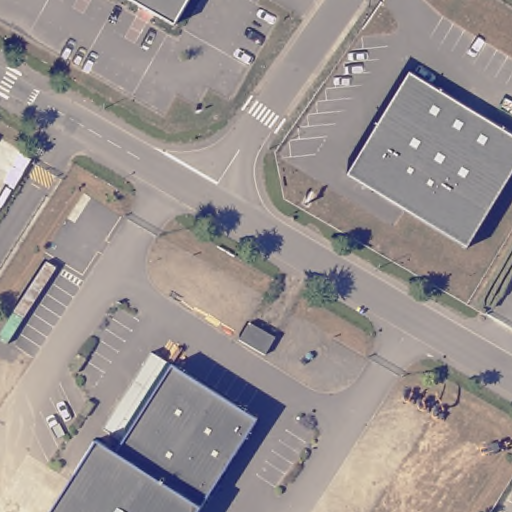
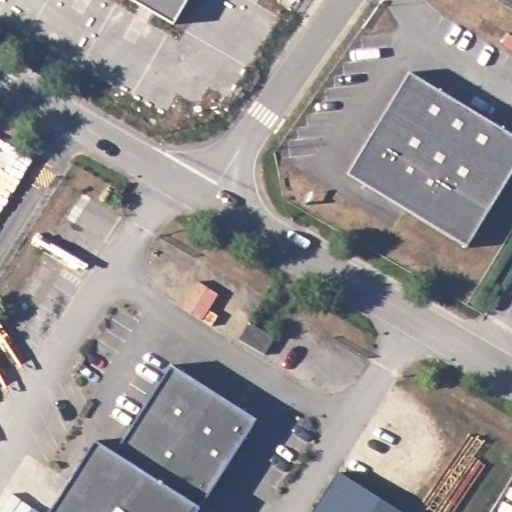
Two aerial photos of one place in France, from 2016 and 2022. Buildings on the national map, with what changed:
unchanged [(172,25),(129,0),(186,0),(172,25)]
unchanged [(343,175),(365,138),(403,71),(512,133),(512,163),(465,245),(402,208),(368,190),(347,177),(343,175)]
unchanged [(280,339),(270,356),(244,341),(254,324),(280,339)]
unchanged [(214,480),(217,483),(212,493),(207,490),(193,512),(45,512),(94,436),(113,449),(118,442),(98,429),(147,352),(252,419),(214,480)]
new [(400,512),(313,512),(334,479),(338,473),(400,512)]

